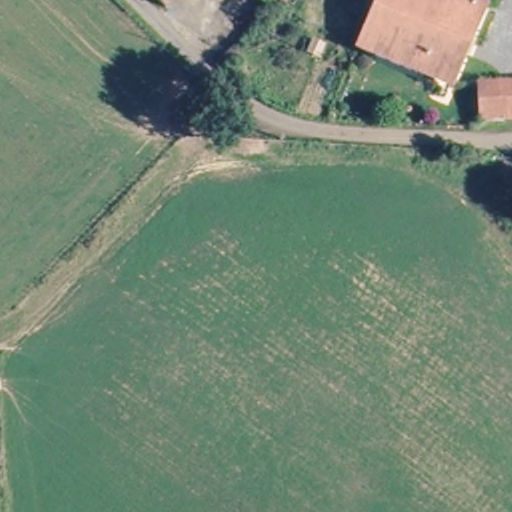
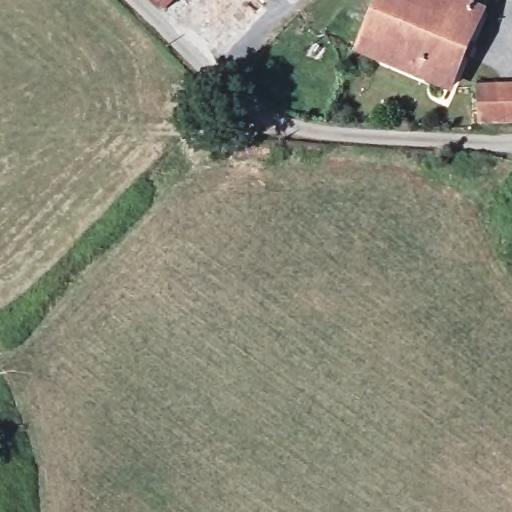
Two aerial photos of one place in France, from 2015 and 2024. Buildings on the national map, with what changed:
unchanged [(151,0),(171,0),(161,10),(151,0)]
unchanged [(254,0),(273,0),(263,9),(254,0)]
unchanged [(355,44),(378,0),(456,0),(493,17),(487,29),(477,24),(446,93),(362,54),(352,50),(355,44)]
unchanged [(481,84),(512,80),(512,116),(486,121),(481,84)]

